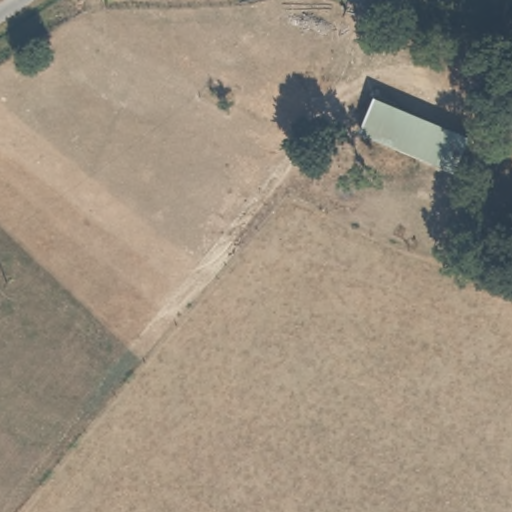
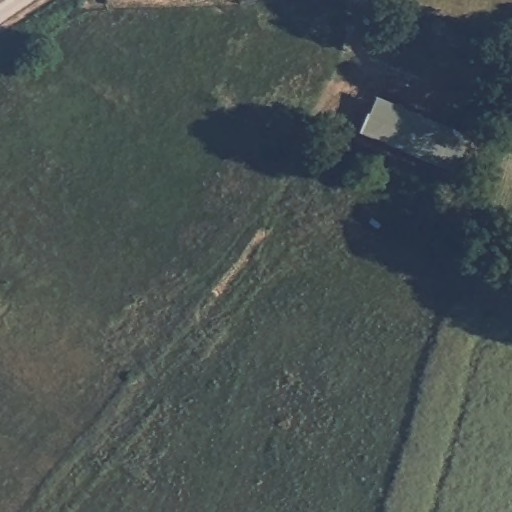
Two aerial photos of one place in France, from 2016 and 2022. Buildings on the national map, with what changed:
unchanged [(354,0),(371,0),(369,5),(354,0)]
unchanged [(399,43),(374,36),(379,18),(403,24),(399,43)]
unchanged [(454,171),(360,130),(375,96),(467,136),(454,171)]

